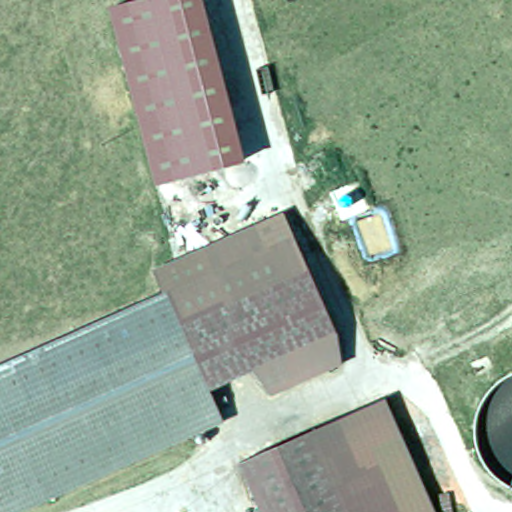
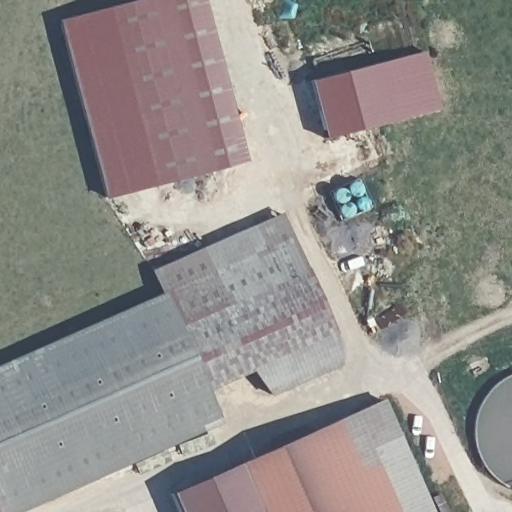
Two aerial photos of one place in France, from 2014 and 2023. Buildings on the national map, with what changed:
unchanged [(109,7),(138,0),(204,0),(245,164),(155,185),(109,7)]
new [(155,185),(107,199),(60,21),(109,7),(155,185)]
new [(440,110),(325,139),(311,80),(425,51),(440,110)]
unchanged [(151,271),(280,214),(305,262),(176,319),(160,287),(151,271)]
unchanged [(176,319),(305,262),(332,326),(251,361),(202,383),(216,414),(0,510),(0,357),(160,287),(176,319)]
unchanged [(343,358),(265,393),(251,361),(332,326),(343,358)]
unchanged [(236,460),(377,394),(428,512),(259,512),(239,465),(236,460)]
new [(259,512),(181,512),(172,493),(239,465),(259,512)]

